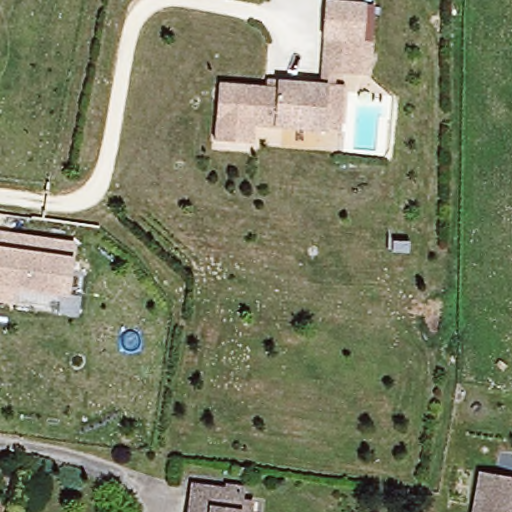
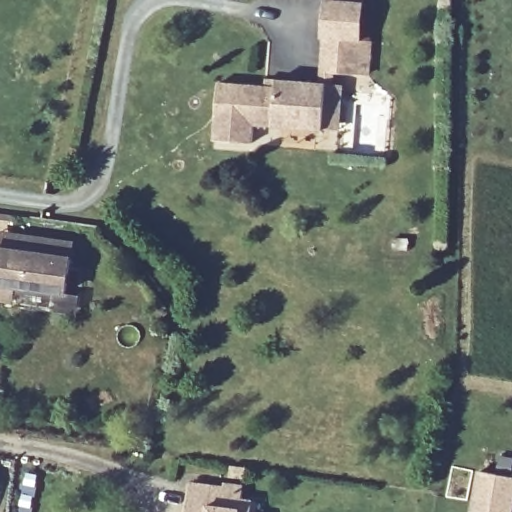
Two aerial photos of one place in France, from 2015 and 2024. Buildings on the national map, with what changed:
unchanged [(217,81),(264,85),(265,76),(316,81),(322,38),(325,0),(346,0),(366,2),(363,38),(373,40),(371,75),(337,72),(336,83),(345,83),(341,129),(322,129),(273,125),(255,125),(254,143),(212,141),(217,81)]
unchanged [(0,228),(73,239),(71,255),(66,295),(16,288),(13,304),(0,302),(0,228)]
unchanged [(512,477),(512,512),(476,512),(484,471),(512,477)]
unchanged [(245,495),(246,506),(255,506),(254,512),(191,512),(194,488),(245,495)]

